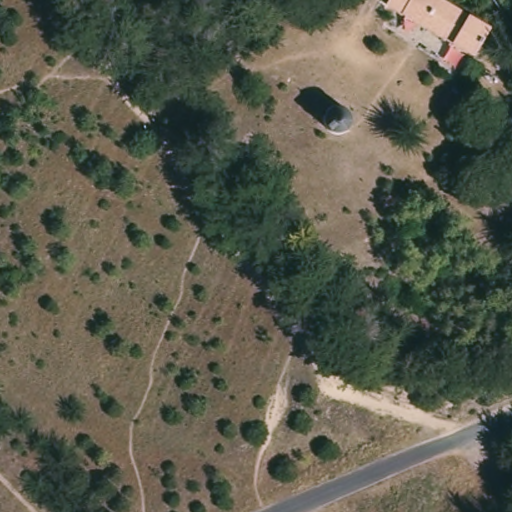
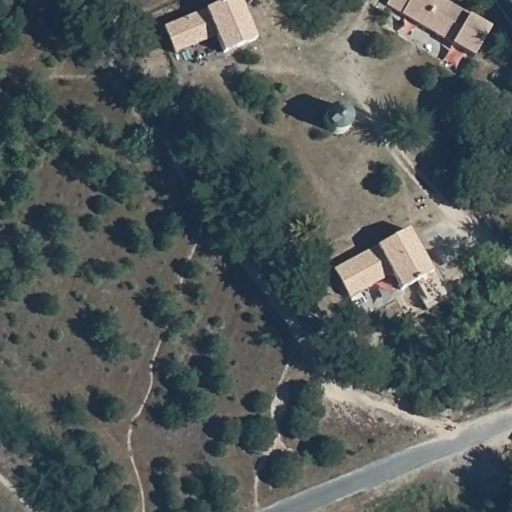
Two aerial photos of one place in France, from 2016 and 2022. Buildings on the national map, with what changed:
new [(238,0),(254,38),(222,52),(215,35),(172,52),(162,26),(224,0),(238,0)]
unchanged [(473,61),(385,10),(391,0),(430,0),(490,35),(473,61)]
unchanged [(332,133),(330,133),(329,132),(328,132),(327,131),(326,130),(325,129),(323,128),(323,126),(322,125),(322,123),(321,121),(321,120),(321,117),(322,116),(322,115),(322,114),(322,111),(324,109),(326,108),(328,106),(330,106),(331,105),(332,104),(334,104),(336,104),(337,104),(338,104),(341,105),(343,105),(344,106),(345,107),(346,108),(347,110),(348,112),(349,113),(350,114),(350,115),(351,117),(351,119),(351,121),(350,123),(349,125),(348,126),(347,128),(345,131),(343,132),(341,133),(339,134),(337,134),(335,134),(333,134),(332,133)]
new [(406,229),(430,273),(398,290),(390,274),(349,296),(333,268),(406,229)]
unchanged [(302,268),(301,269),(299,269),(298,269),(297,269),(296,269),(293,268),(292,267),(292,266),(291,265),(290,264),(290,263),(290,262),(290,261),(289,260),(289,258),(290,257),(290,256),(292,254),(293,253),(295,253),(296,252),(297,252),(298,251),(300,252),(301,252),(302,252),(304,254),(306,255),(306,257),(307,258),(307,259),(307,261),(307,262),(306,264),(305,265),(303,267),(302,268)]

